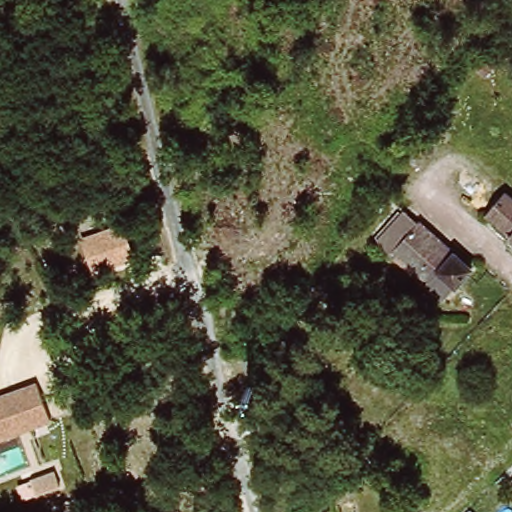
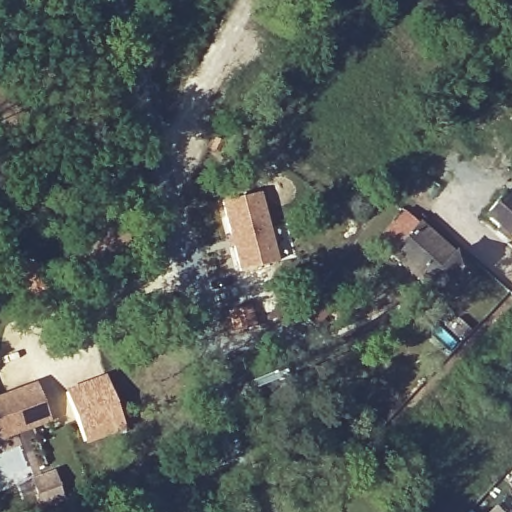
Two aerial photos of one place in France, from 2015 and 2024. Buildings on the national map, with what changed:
new [(252,194),(271,263),(235,273),(217,204),(252,194)]
unchanged [(512,212),(512,252),(480,225),(499,202),(512,212)]
unchanged [(404,213),(417,225),(418,223),(471,269),(442,301),(377,243),(404,213)]
unchanged [(120,219),(135,260),(90,276),(76,237),(120,219)]
new [(101,378),(120,426),(80,441),(62,393),(101,378)]
unchanged [(35,379),(51,423),(0,441),(0,391),(35,379)]

